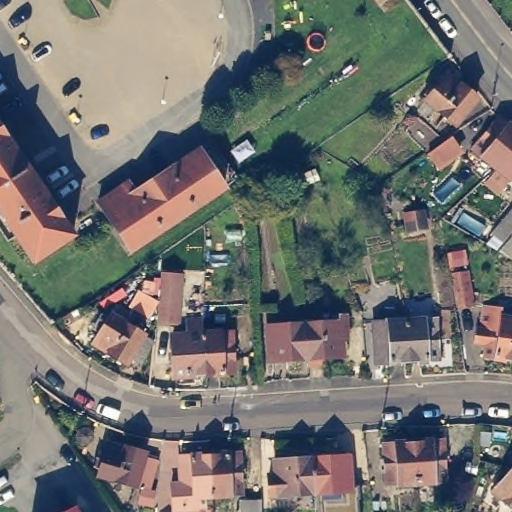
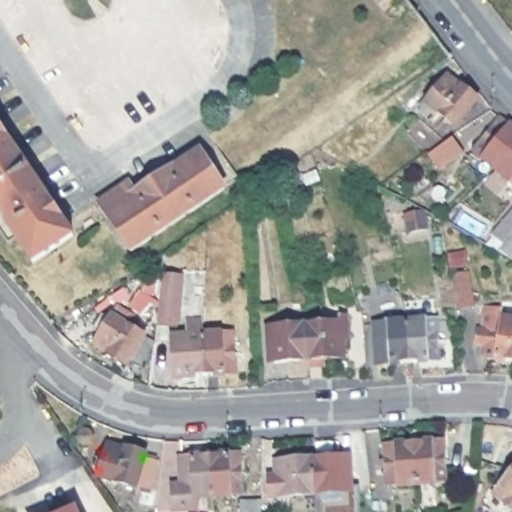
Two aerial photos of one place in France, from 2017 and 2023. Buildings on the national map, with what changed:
unchanged [(376,0),(397,0),(397,1),(385,11),(376,0)]
unchanged [(461,121),(431,96),(434,94),(429,90),(437,80),(442,84),(453,70),(482,94),(461,121)]
unchanged [(512,118),(512,151),(502,164),(479,145),(506,113),(512,118)]
unchanged [(0,209),(0,122),(74,232),(34,258),(0,209)]
unchanged [(460,151),(437,166),(428,152),(450,137),(460,151)]
unchanged [(512,151),(512,172),(502,164),(512,151)]
unchanged [(173,174),(202,155),(225,189),(131,251),(99,204),(130,183),(137,192),(170,170),(173,174)]
unchanged [(512,235),(512,251),(502,246),(512,235)]
unchanged [(164,275),(184,277),(179,323),(159,321),(164,275)]
unchanged [(490,347),(495,306),(512,308),(512,351),(490,347)]
unchanged [(341,317),(340,311),(347,310),(349,333),(342,334),(344,352),(322,353),(322,360),(310,361),(310,353),(307,354),(305,320),(341,317)]
unchanged [(94,340),(102,326),(96,322),(103,311),(110,314),(112,311),(145,330),(144,331),(155,337),(142,360),(131,353),(127,360),(94,340)]
unchanged [(437,314),(439,356),(409,357),(407,316),(437,314)]
unchanged [(409,357),(380,360),(376,360),(374,317),(377,317),(407,316),(409,357)]
unchanged [(176,377),(175,362),(175,355),(174,336),(189,335),(187,321),(202,320),(204,334),(206,376),(176,377)]
unchanged [(307,354),(271,357),(268,322),(305,320),(307,354)]
unchanged [(204,334),(233,332),(236,374),(206,376),(204,334)]
unchanged [(414,437),(444,436),(446,477),(417,479),(414,437)]
unchanged [(387,481),(384,439),(414,437),(417,479),(387,481)]
unchanged [(150,451),(164,456),(156,484),(141,481),(141,482),(104,472),(106,465),(99,462),(102,453),(109,455),(114,438),(151,449),(150,451)]
unchanged [(216,450),(245,448),(247,491),(217,492),(216,450)]
unchanged [(188,494),(186,452),(216,450),(217,492),(188,494)]
unchanged [(319,464),(354,462),(356,497),(320,499),(319,464)]
unchanged [(282,502),(274,502),(274,482),(282,482),(282,467),(319,464),(320,499),(282,502)]
unchanged [(498,487),(512,470),(512,499),(498,487)]
unchanged [(386,501),(387,512),(374,512),(374,501),(386,501)]
unchanged [(74,504),(78,512),(57,512),(74,504)]

